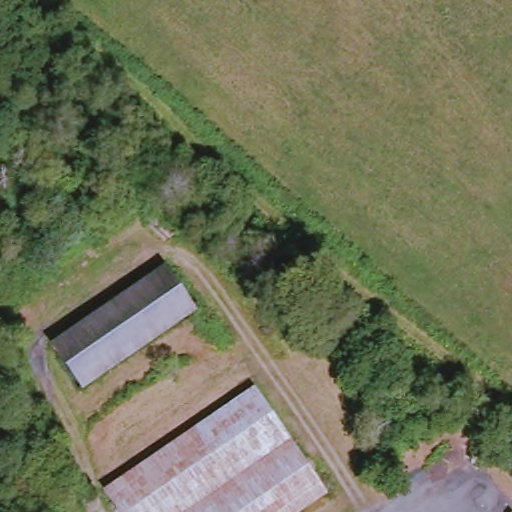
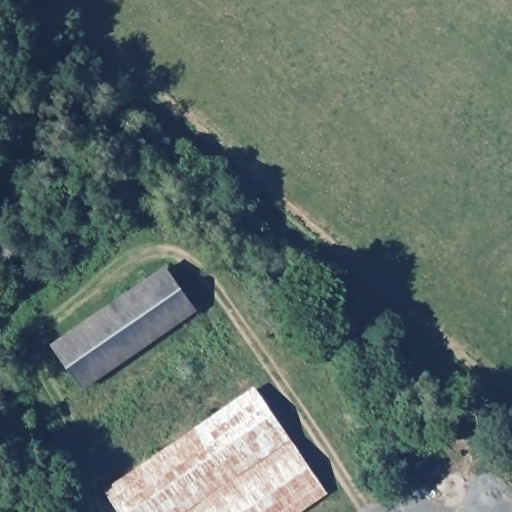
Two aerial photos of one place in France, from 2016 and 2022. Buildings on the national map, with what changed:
unchanged [(47,345),(163,263),(198,308),(78,391),(47,345)]
unchanged [(252,386),(325,492),(297,512),(113,512),(98,491),(252,386)]

